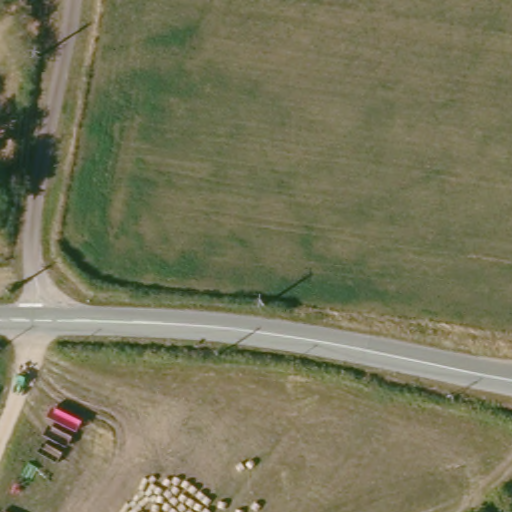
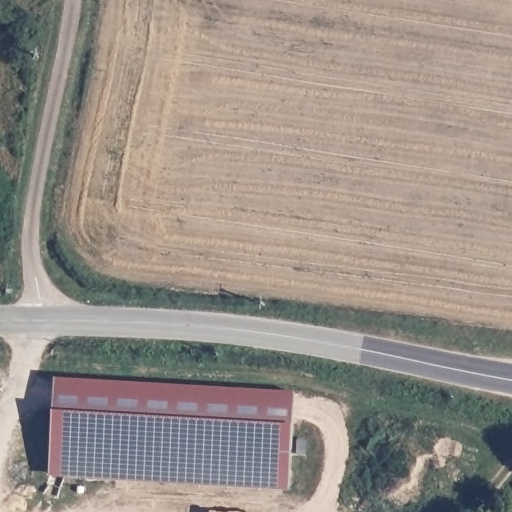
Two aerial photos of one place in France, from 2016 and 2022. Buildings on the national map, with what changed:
new [(284,390),(284,477),(43,478),(43,391),(284,390)]

